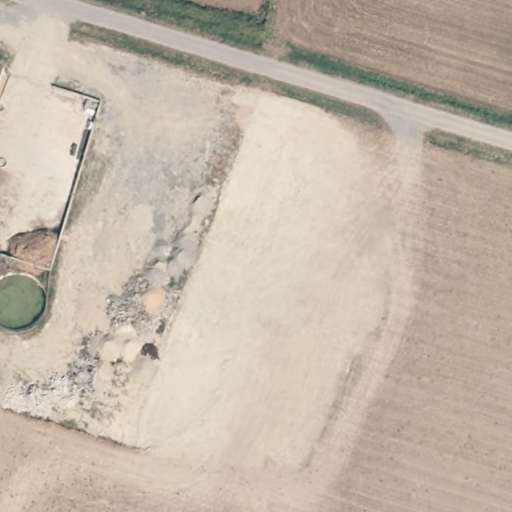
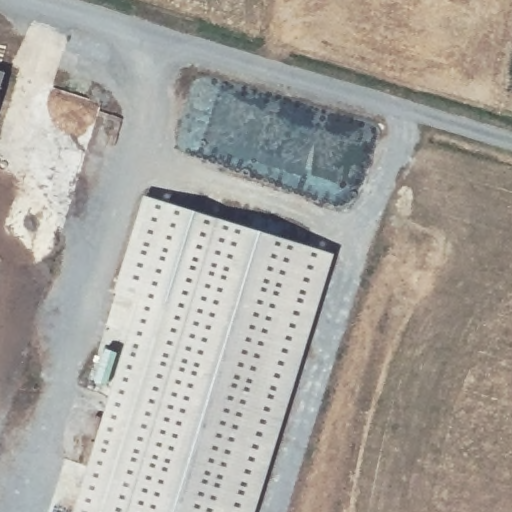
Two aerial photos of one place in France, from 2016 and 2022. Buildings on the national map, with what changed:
unchanged [(0,98),(0,70),(8,72),(0,98)]
new [(73,512),(111,388),(95,383),(106,347),(122,352),(139,300),(114,292),(144,195),(335,253),(256,512),(73,512)]

